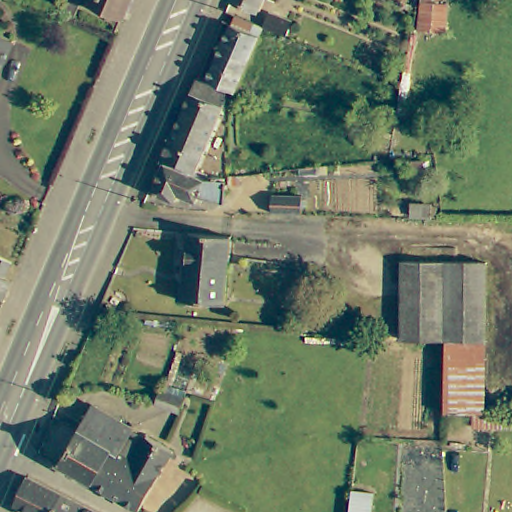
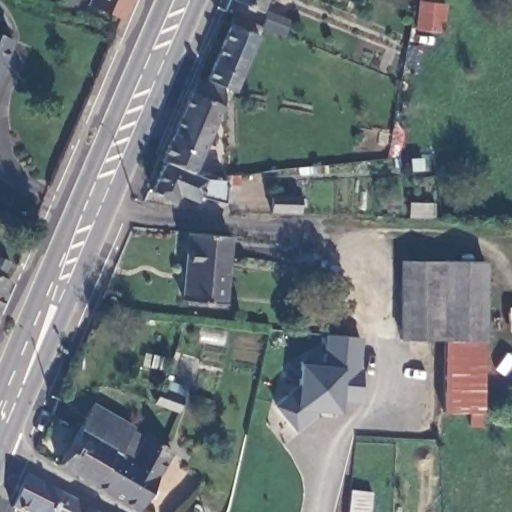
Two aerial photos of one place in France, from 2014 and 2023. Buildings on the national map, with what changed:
unchanged [(63,0),(75,0),(67,15),(57,11),(63,0)]
unchanged [(86,0),(125,0),(117,17),(85,3),(86,0)]
unchanged [(229,0),(260,0),(255,11),(229,0)]
unchanged [(441,33),(414,30),(415,13),(416,4),(443,6),(443,14),(441,33)]
unchanged [(279,33),(261,27),(265,15),(283,22),(279,33)]
unchanged [(230,93),(220,89),(202,80),(226,25),(255,37),(230,93)]
unchanged [(0,62),(0,36),(10,40),(0,62)]
unchanged [(221,191),(219,200),(195,195),(193,202),(174,193),(170,201),(149,191),(160,164),(157,162),(165,144),(195,76),(202,80),(220,89),(220,104),(197,157),(189,176),(201,181),(203,180),(204,157),(220,157),(220,175),(220,178),(224,178),(222,191),(221,191)]
unchanged [(237,173),(236,184),(224,183),(225,174),(237,173)]
unchanged [(268,197),(296,198),(295,216),(277,215),(267,214),(268,197)]
unchanged [(427,205),(426,216),(407,215),(408,204),(427,205)]
unchanged [(185,233),(225,237),(220,304),(179,299),(185,233)]
unchanged [(400,258),(440,257),(441,337),(400,338),(400,258)]
unchanged [(441,337),(440,257),(482,257),(483,336),(441,337)]
unchanged [(0,261),(5,263),(0,276),(0,261)]
unchanged [(0,281),(6,283),(0,296),(0,281)]
new [(359,367),(362,368),(359,402),(340,400),(340,412),(320,410),(295,430),(274,404),(297,386),(300,362),(326,364),(326,333),(361,337),(359,367)]
unchanged [(442,412),(442,405),(441,351),(441,342),(441,337),(483,336),(483,407),(483,410),(442,412)]
unchanged [(156,388),(180,396),(175,413),(151,404),(156,388)]
unchanged [(90,406),(130,428),(115,451),(130,459),(142,436),(170,452),(136,512),(56,465),(90,406)]
unchanged [(512,411),(512,423),(482,423),(482,412),(512,411)]
unchanged [(10,508),(23,478),(57,495),(81,508),(89,512),(17,512),(10,508)]
unchanged [(369,493),(367,512),(347,512),(349,490),(369,493)]

